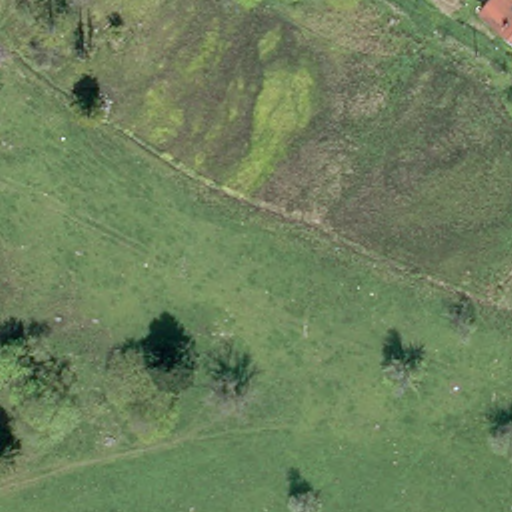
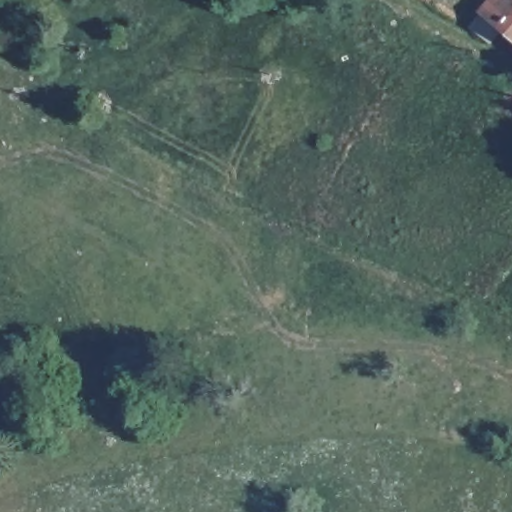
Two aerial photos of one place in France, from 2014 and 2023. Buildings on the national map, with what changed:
unchanged [(477,17),(491,0),(512,0),(512,48),(477,17)]

